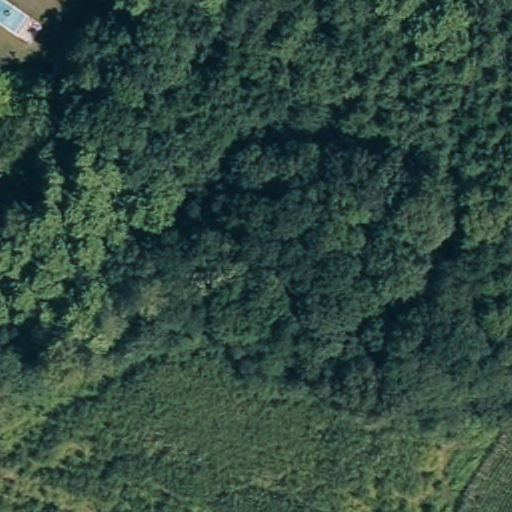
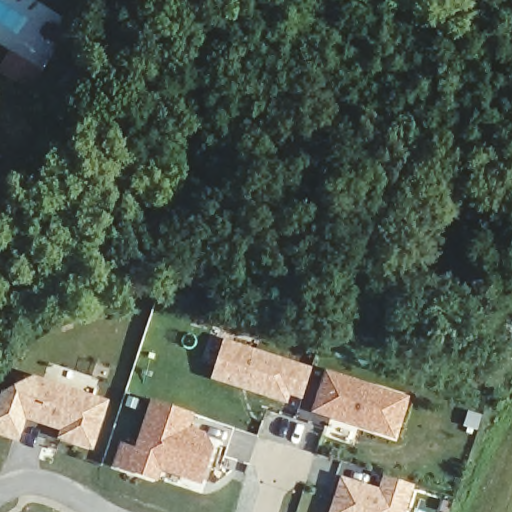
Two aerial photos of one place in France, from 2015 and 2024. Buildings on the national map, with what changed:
new [(314,369),(304,401),(290,397),(289,404),(212,380),(225,340),(314,369)]
new [(410,398),(398,441),(312,414),(325,373),(410,398)]
new [(0,394),(32,378),(19,418),(26,420),(19,443),(0,436),(0,395),(0,394)]
new [(110,402),(94,451),(58,440),(62,430),(19,418),(32,378),(110,402)]
new [(195,416),(191,429),(206,433),(215,450),(203,486),(161,474),(158,482),(115,469),(123,445),(138,449),(151,402),(195,416)]
new [(383,476),(416,485),(408,512),(332,512),(342,477),(380,489),(383,476)]

